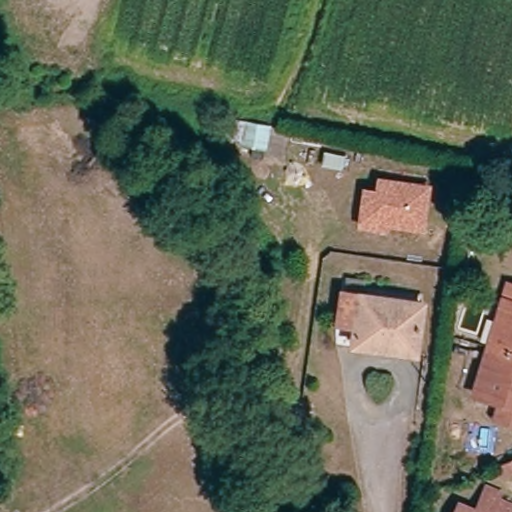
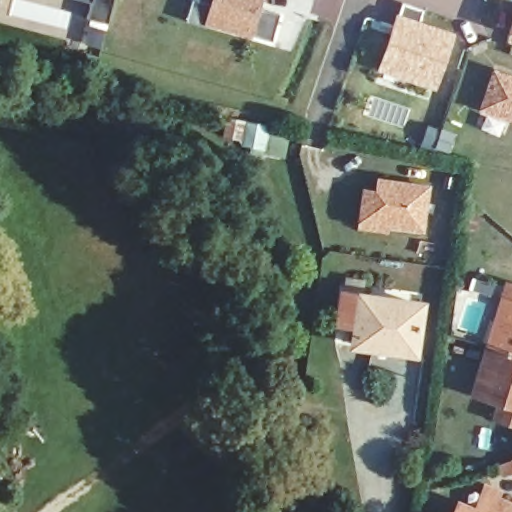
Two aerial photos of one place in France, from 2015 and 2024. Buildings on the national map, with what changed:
new [(88,17),(91,2),(85,0),(112,0),(107,22),(88,17)]
new [(250,36),(206,23),(212,4),(199,1),(199,0),(262,0),(260,8),(277,13),(272,39),(250,36)]
new [(421,25),(400,19),(405,5),(425,12),(421,25)]
new [(436,88),(382,70),(400,19),(453,37),(436,88)]
new [(512,19),(512,36),(507,35),(512,19)]
new [(512,122),(478,111),(492,67),(512,74),(512,122)]
unchanged [(225,138),(228,121),(247,124),(272,129),(267,152),(244,147),(245,142),(225,138)]
unchanged [(375,190),(377,178),(433,186),(427,233),(388,227),(387,233),(356,228),(362,188),(375,190)]
unchanged [(380,345),(381,341),(361,338),(363,322),(346,320),(350,291),(428,303),(421,351),(380,345)]
unchanged [(512,428),(506,426),(510,411),(485,403),(500,355),(508,357),(512,344),(512,428)]
unchanged [(512,463),(512,475),(505,478),(501,468),(512,463)]
unchanged [(512,505),(512,512),(482,512),(490,496),(512,505)]
unchanged [(480,512),(462,512),(465,506),(480,512)]

